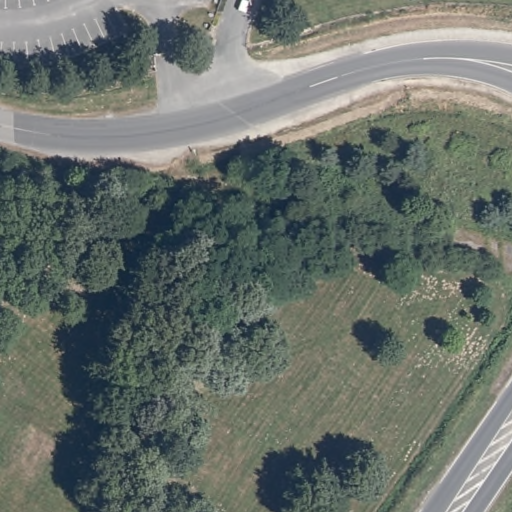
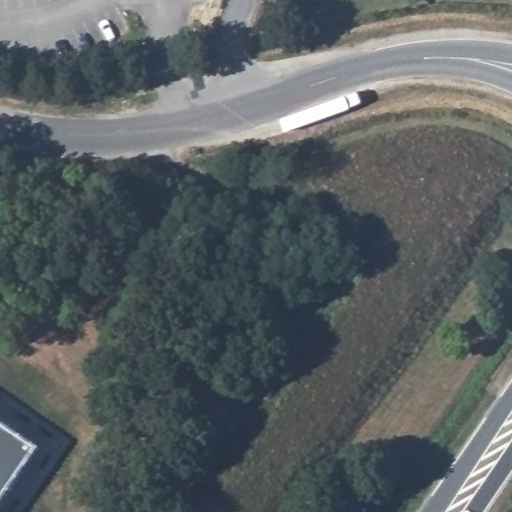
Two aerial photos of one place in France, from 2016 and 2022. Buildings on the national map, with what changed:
new [(33,447),(0,497),(0,424),(33,447)]

